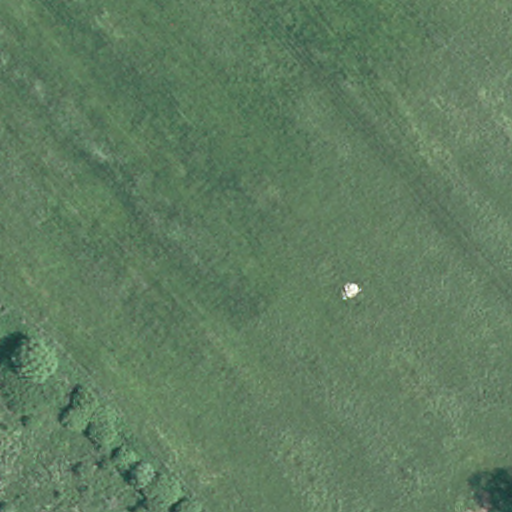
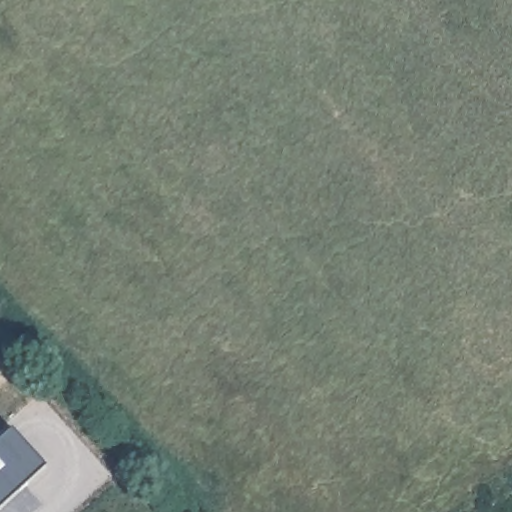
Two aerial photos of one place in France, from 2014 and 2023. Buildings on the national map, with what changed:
new [(42,464),(0,502),(0,438),(11,429),(42,464)]

